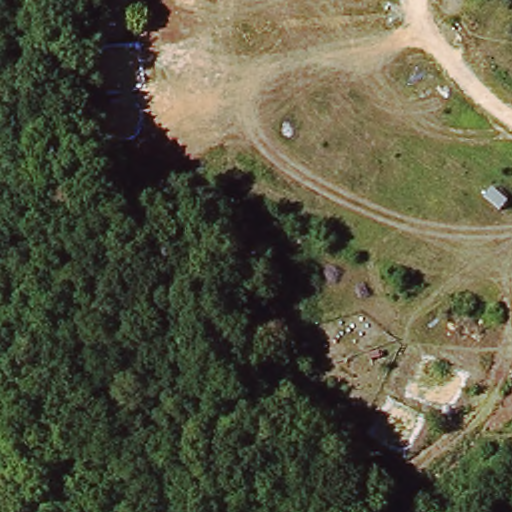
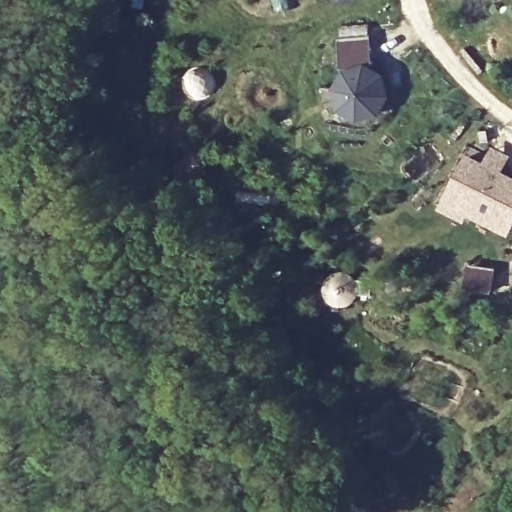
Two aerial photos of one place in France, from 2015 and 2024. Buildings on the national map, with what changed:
new [(335,86),(346,69),(342,38),(371,35),(374,65),(389,74),(394,96),(382,115),(360,120),(341,109),(335,86)]
new [(451,195),(469,156),(486,165),(490,157),(494,148),(508,155),(504,164),(500,171),(512,177),(512,224),(473,205),(468,217),(446,206),(451,195)]
new [(325,285),(327,281),(330,277),(334,273),(338,271),(343,270),(348,271),(357,276),(360,280),(374,280),(373,293),(362,293),(359,300),(355,305),(351,307),(346,308),(341,308),(336,306),(328,300),(326,295),(325,290),(325,285)]

